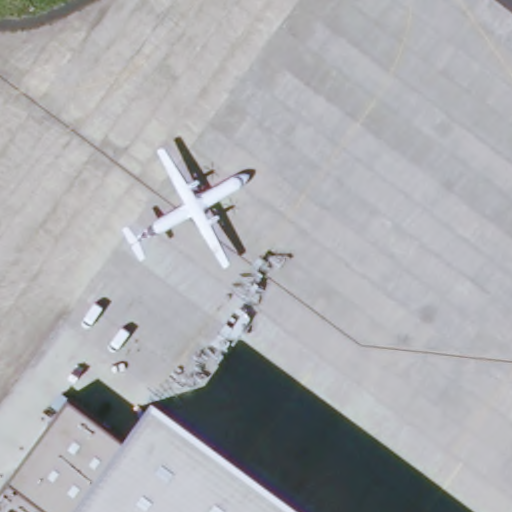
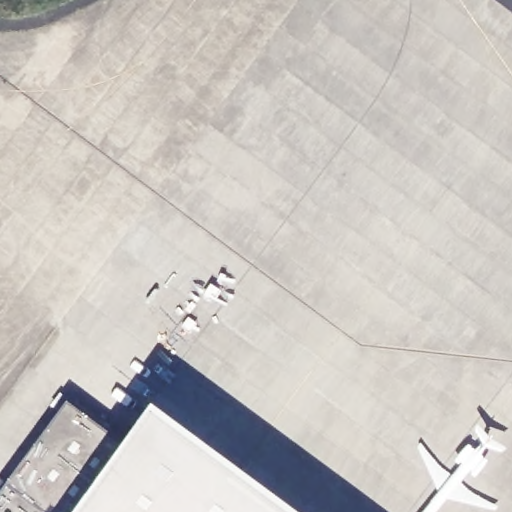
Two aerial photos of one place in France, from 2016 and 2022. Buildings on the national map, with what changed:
unchanged [(0,489),(68,396),(120,435),(155,385),(327,512),(0,512),(0,489)]

